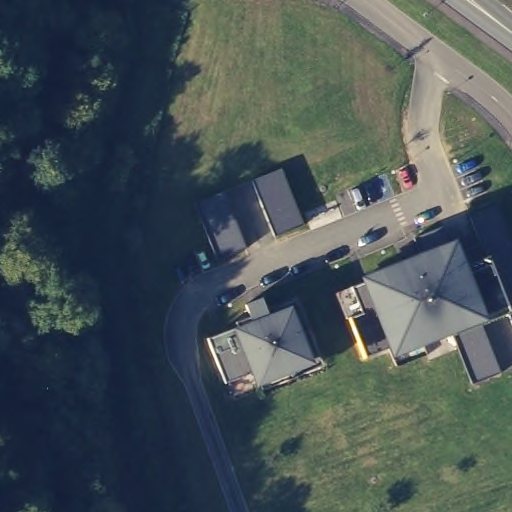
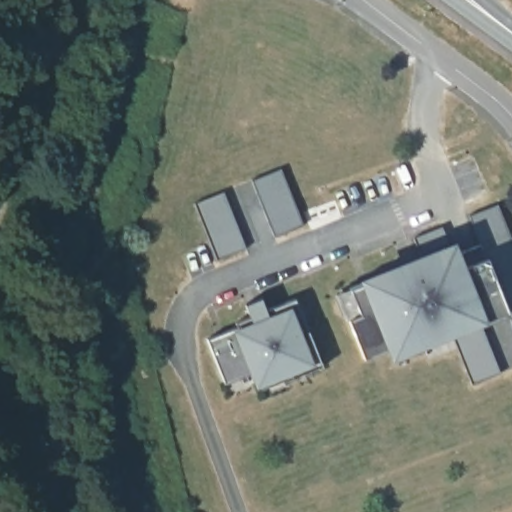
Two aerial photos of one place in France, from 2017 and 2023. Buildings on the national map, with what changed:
unchanged [(273,238),(252,180),(278,170),(300,226),(273,238)]
unchanged [(216,260),(193,202),(220,190),(245,249),(216,260)]
unchanged [(508,315),(483,324),(498,373),(471,384),(455,335),(389,360),(384,348),(361,359),(336,294),(359,285),(357,278),(453,241),(460,255),(481,246),(469,216),(497,205),(512,243),(512,325),(508,315)]
unchanged [(255,389),(248,372),(225,382),(207,337),(250,321),(243,303),(262,297),(267,309),(294,300),(320,366),(255,389)]

